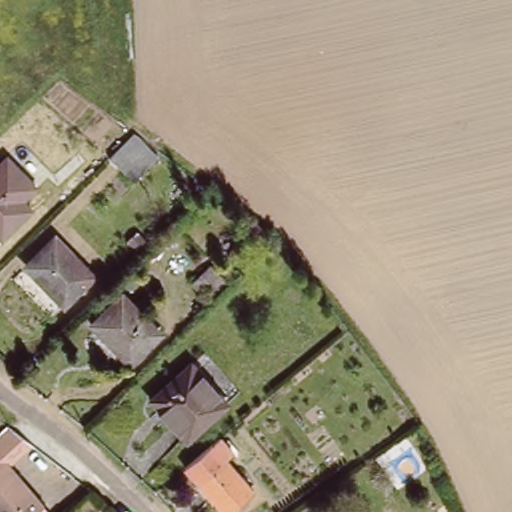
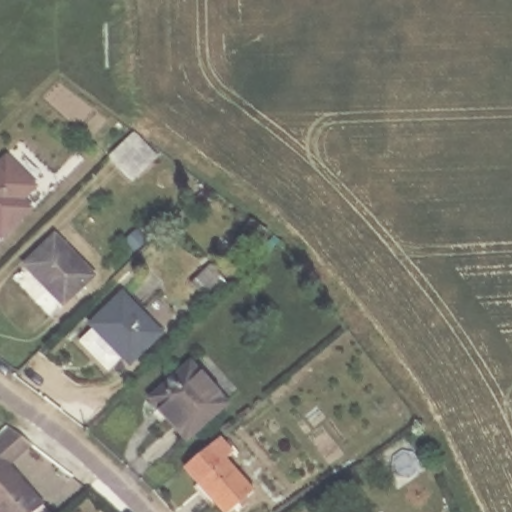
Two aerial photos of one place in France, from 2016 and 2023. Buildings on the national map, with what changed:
unchanged [(131,144),(154,168),(127,194),(105,170),(131,144)]
unchanged [(37,185),(22,200),(31,207),(0,236),(0,152),(0,151),(37,185)]
unchanged [(250,257),(238,248),(249,233),(262,242),(250,257)]
unchanged [(60,240),(97,279),(69,307),(32,268),(60,240)]
unchanged [(206,277),(215,286),(197,306),(187,296),(206,277)]
unchanged [(127,297),(165,335),(136,365),(99,327),(127,297)]
unchanged [(202,367),(237,406),(197,442),(162,403),(202,367)]
unchanged [(46,512),(8,512),(0,503),(0,469),(7,463),(0,456),(0,447),(11,436),(17,430),(18,430),(39,454),(15,473),(47,511),(46,512)]
unchanged [(224,440),(238,455),(230,462),(260,495),(239,512),(229,512),(190,468),(224,440)]

